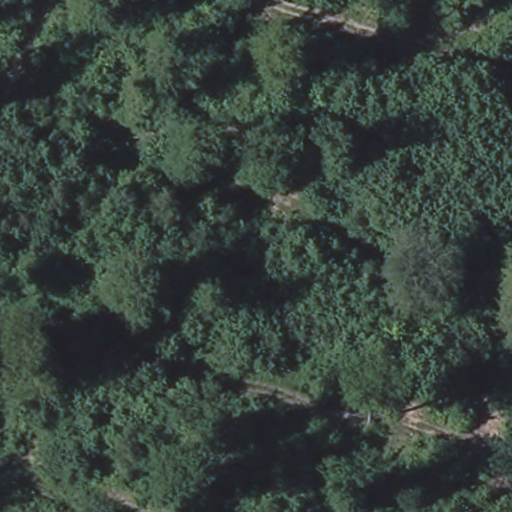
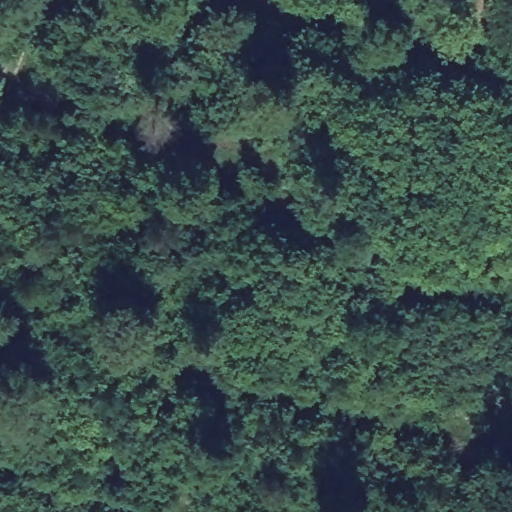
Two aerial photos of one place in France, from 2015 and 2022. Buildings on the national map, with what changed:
[]

